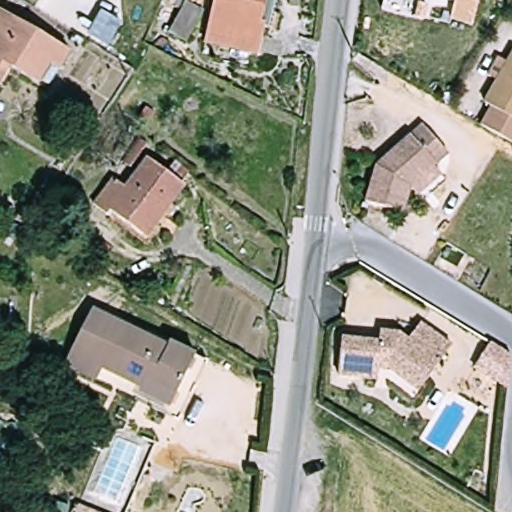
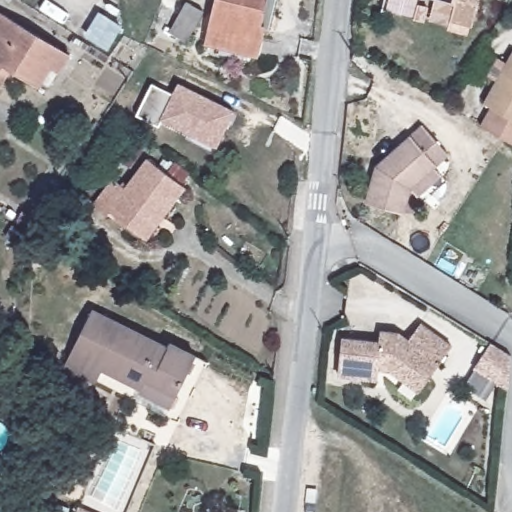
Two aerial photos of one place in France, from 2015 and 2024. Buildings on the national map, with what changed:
unchanged [(220,0),(281,0),(275,28),(268,26),(260,56),(210,44),(220,0)]
unchanged [(442,0),(454,0),(454,3),(442,0)]
unchanged [(208,13),(190,42),(173,32),(190,3),(208,13)]
unchanged [(42,86),(15,69),(3,88),(0,86),(0,10),(73,55),(63,71),(55,66),(42,86)]
unchanged [(484,127),(495,109),(489,104),(501,84),(493,79),(503,60),(512,65),(512,64),(512,144),(484,127)]
new [(150,84),(171,94),(176,84),(231,110),(214,146),(160,119),(156,126),(134,114),(150,84)]
unchanged [(405,190),(397,216),(361,205),(371,172),(417,131),(442,159),(428,171),(405,190)]
unchanged [(150,239),(113,212),(110,215),(96,204),(116,179),(128,188),(150,159),(188,189),(150,239)]
unchanged [(20,211),(25,214),(43,184),(55,192),(30,232),(14,221),(20,211)]
unchanged [(182,423),(169,417),(139,402),(146,389),(106,369),(100,383),(68,366),(95,310),(171,348),(173,344),(199,357),(212,363),(182,423)]
unchanged [(407,383),(392,372),(380,371),(379,382),(341,378),(345,340),(381,344),(382,333),(401,334),(410,342),(423,325),(453,347),(429,379),(420,392),(407,383)]
unchanged [(512,357),(509,390),(476,370),(491,344),(512,357)]

